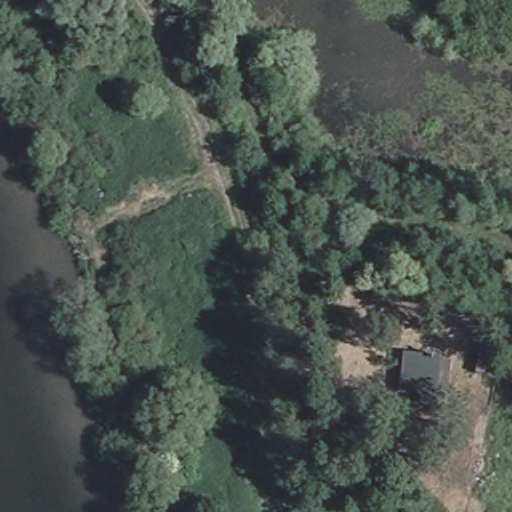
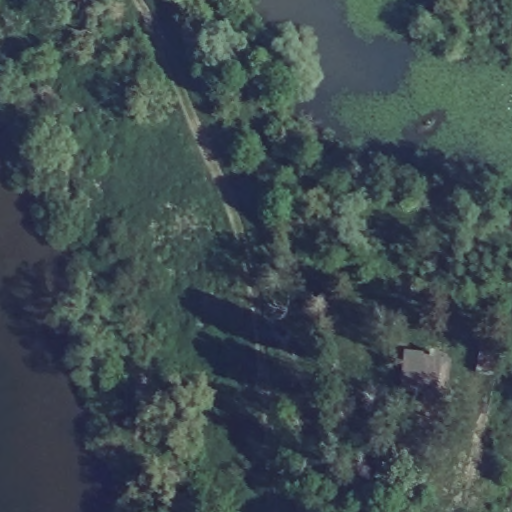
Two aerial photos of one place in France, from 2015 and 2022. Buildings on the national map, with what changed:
unchanged [(443,399),(397,396),(405,358),(447,362),(443,399)]

